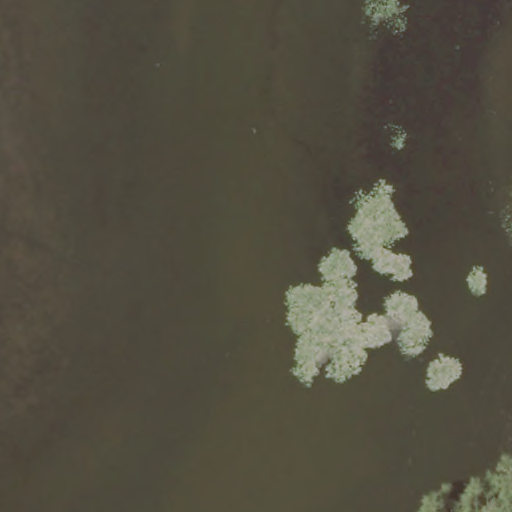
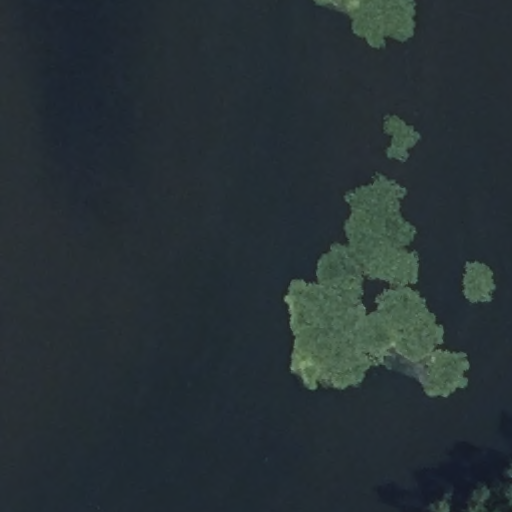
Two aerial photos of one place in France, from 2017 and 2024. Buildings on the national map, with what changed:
[]

